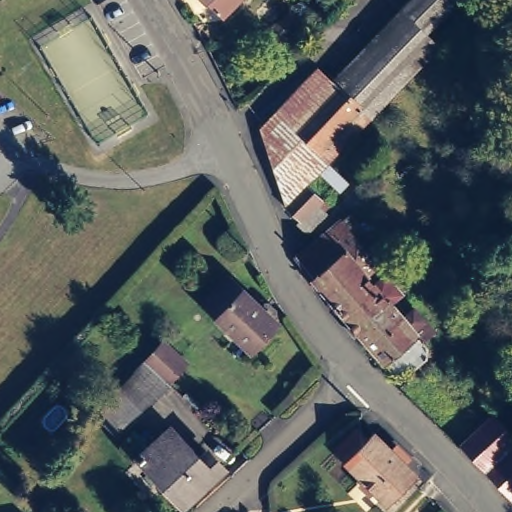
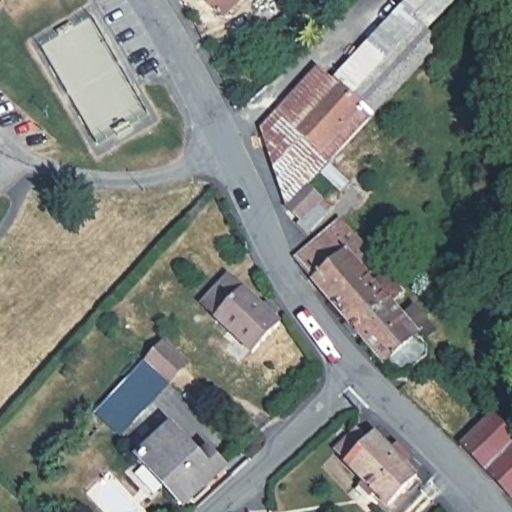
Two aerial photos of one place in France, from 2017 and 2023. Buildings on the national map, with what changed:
unchanged [(217,15),(201,0),(231,0),(217,15)]
unchanged [(251,0),(276,0),(259,19),(245,7),(251,0)]
unchanged [(437,12),(425,26),(440,39),(372,114),(333,77),(400,0),(448,0),(437,12)]
unchanged [(277,7),(288,17),(274,33),(262,23),(277,7)]
unchanged [(318,65),(333,77),(372,114),(321,169),(309,182),(330,201),(326,207),(330,212),(314,229),(300,216),(303,212),(291,201),(293,199),(262,125),(318,65)]
unchanged [(338,208),(374,249),(365,260),(373,268),(380,261),(396,279),(387,289),(400,303),(410,296),(431,319),(423,327),(426,330),(429,338),(403,360),(389,360),(353,321),(348,325),(337,313),(342,307),(291,250),(314,229),(338,208)]
unchanged [(224,272),(257,303),(262,298),(274,309),(269,315),(275,321),(247,349),(197,301),(224,272)]
unchanged [(145,363),(163,343),(185,364),(168,383),(118,435),(96,415),(145,363)]
unchanged [(512,428),(512,486),(510,488),(461,436),(493,409),(512,428)]
unchanged [(351,425),(360,434),(366,429),(385,447),(390,442),(398,450),(394,455),(411,472),(382,500),(329,447),(351,425)]
unchanged [(172,430),(202,461),(210,454),(223,468),(186,502),(144,458),(172,430)]

